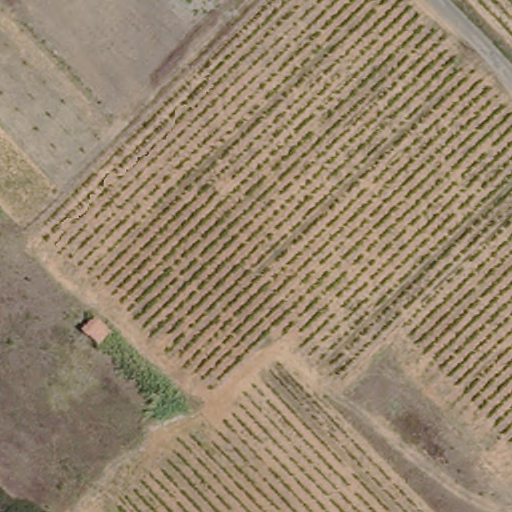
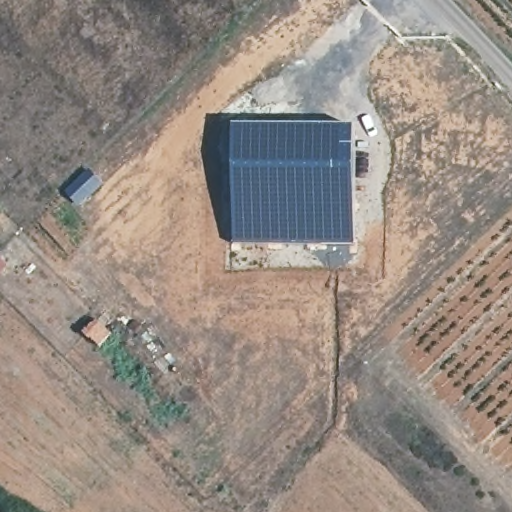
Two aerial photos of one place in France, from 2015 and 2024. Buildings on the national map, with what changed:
new [(235,245),(235,128),(357,128),(357,245),(235,245)]
unchanged [(104,326),(93,337),(85,327),(95,317),(104,326)]

